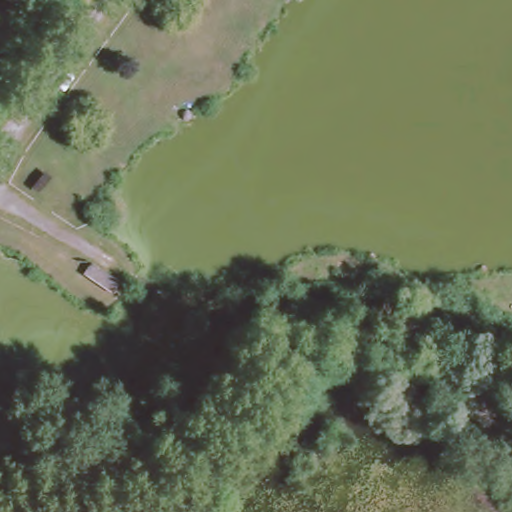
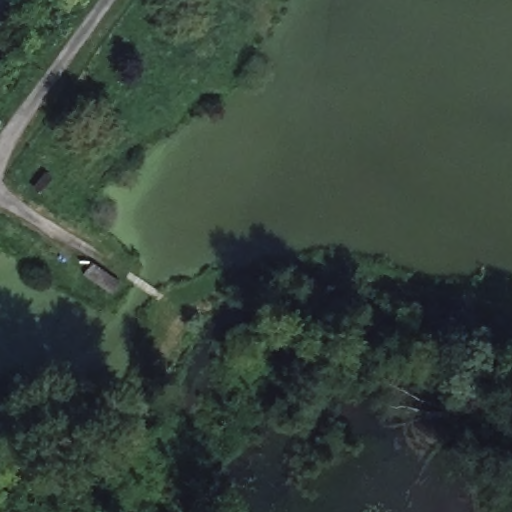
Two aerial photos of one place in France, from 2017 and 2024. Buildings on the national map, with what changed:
unchanged [(91,261),(118,282),(103,301),(76,282),(91,261)]

